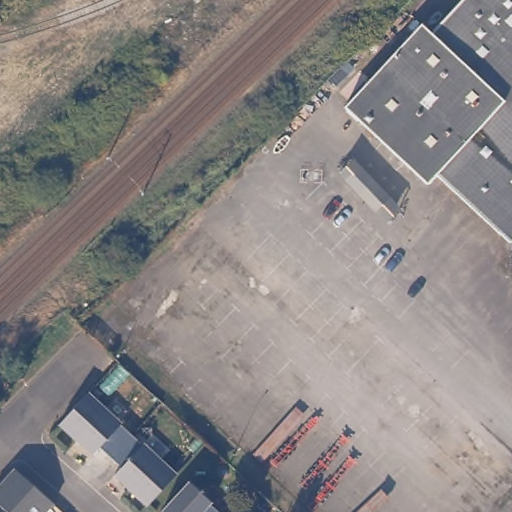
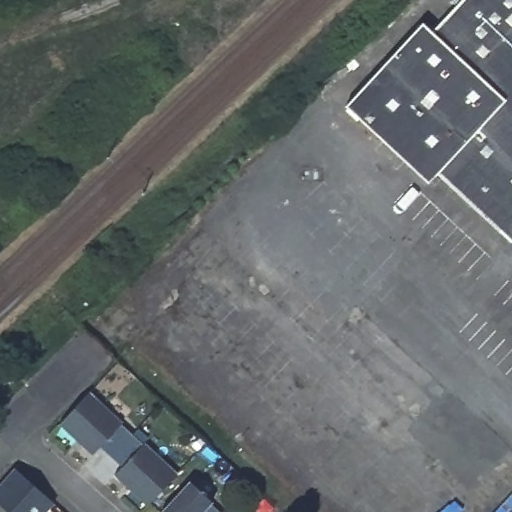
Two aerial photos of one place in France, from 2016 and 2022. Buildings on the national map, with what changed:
unchanged [(339,119),(347,111),(345,110),(419,28),(429,37),(462,0),(512,0),(512,96),(504,104),(512,112),(512,243),(438,176),(429,185),(366,129),(359,136),(339,119)]
unchanged [(504,104),(512,96),(512,112),(504,104)]
unchanged [(175,473),(146,506),(113,475),(119,466),(98,449),(93,456),(57,426),(85,393),(175,473)]
unchanged [(3,503),(0,501),(0,482),(15,465),(42,490),(54,500),(43,512),(7,512),(9,509),(3,503)]
unchanged [(206,507),(212,512),(160,512),(188,480),(212,500),(206,507)]

